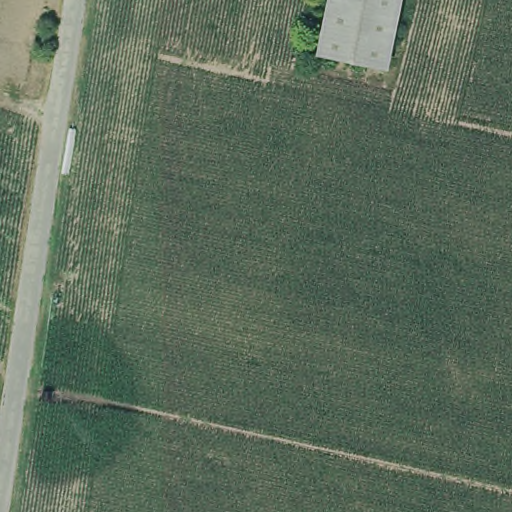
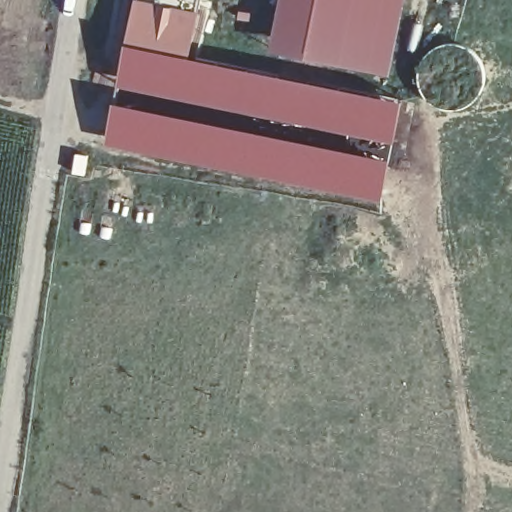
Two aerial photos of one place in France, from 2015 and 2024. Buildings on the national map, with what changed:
new [(199,10),(190,55),(403,99),(392,142),(113,85),(132,0),(136,0),(199,10)]
new [(382,61),(277,43),(285,0),(391,0),(382,61)]
demolished [(382,64),(307,47),(319,0),(398,0),(382,64)]
new [(388,156),(380,202),(102,142),(110,101),(388,156)]

